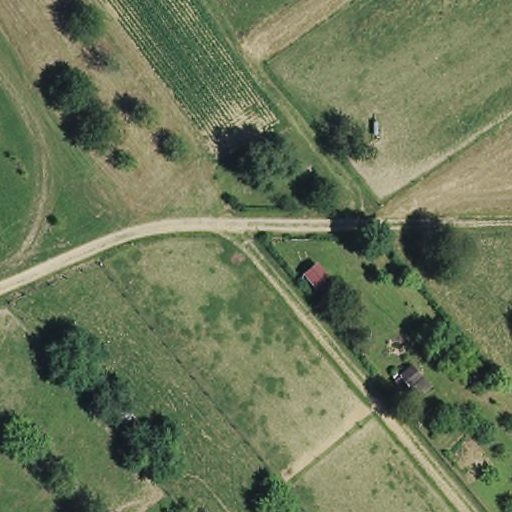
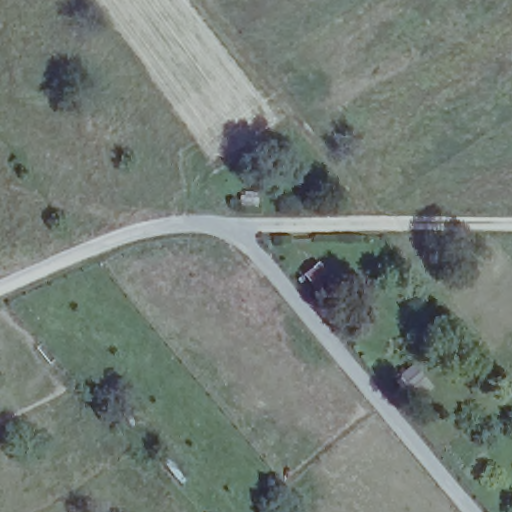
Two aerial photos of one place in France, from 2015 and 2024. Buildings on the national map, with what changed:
unchanged [(418,398),(393,377),(407,362),(433,384),(418,398)]

